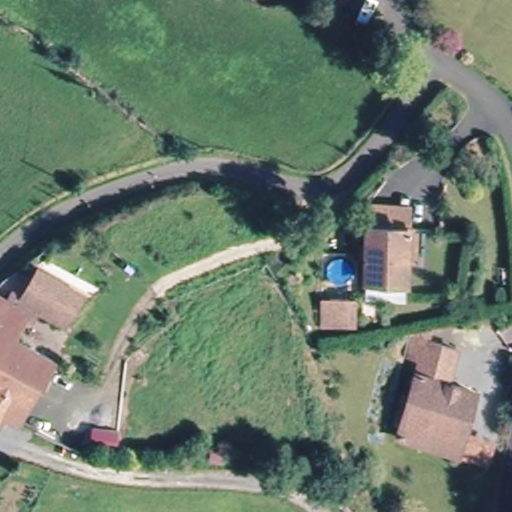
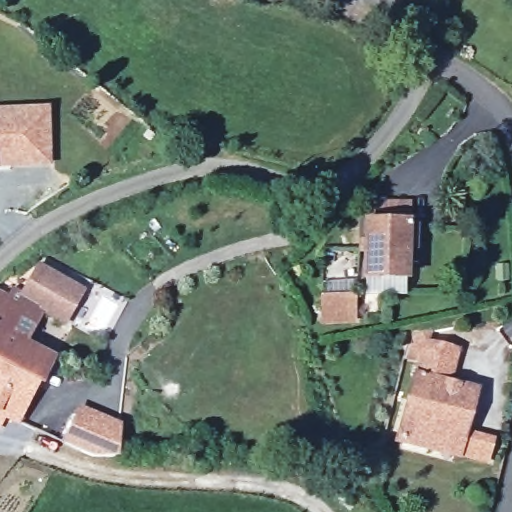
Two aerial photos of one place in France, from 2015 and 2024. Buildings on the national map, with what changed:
new [(49,107),(52,166),(0,167),(0,109),(49,107)]
unchanged [(402,265),(402,290),(362,290),(363,236),(363,220),(411,220),(411,235),(410,265),(402,265)]
unchanged [(40,311),(23,301),(40,275),(79,298),(65,325),(40,311)]
unchanged [(4,291),(23,301),(40,311),(31,325),(22,321),(12,341),(47,360),(33,386),(0,369),(0,300),(4,291)]
unchanged [(352,320),(328,320),(328,323),(322,323),(322,298),(353,298),(352,320)]
unchanged [(420,450),(401,445),(422,370),(405,365),(411,345),(430,340),(426,351),(455,358),(446,391),(471,397),(458,442),(454,457),(420,450)]
unchanged [(33,386),(14,422),(2,416),(0,420),(0,369),(33,386)]
new [(79,406),(122,425),(119,459),(91,457),(61,443),(79,406)]
new [(475,425),(504,432),(503,450),(471,441),(475,425)]
unchanged [(491,449),(487,465),(457,458),(462,442),(491,449)]

